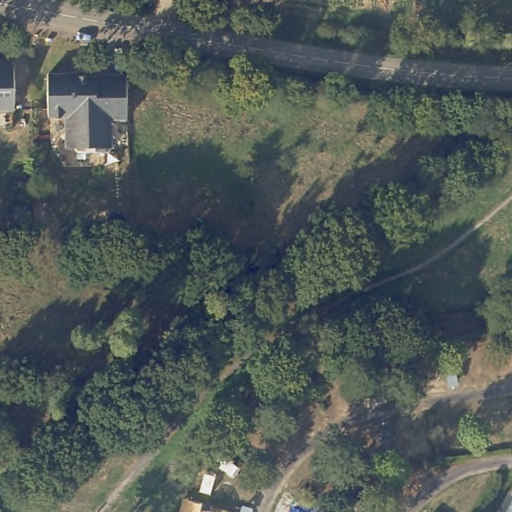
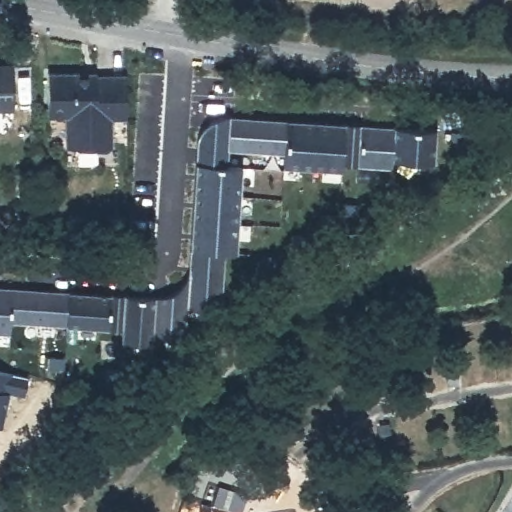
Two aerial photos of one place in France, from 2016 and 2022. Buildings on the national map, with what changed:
unchanged [(19,65),(18,109),(0,108),(0,65),(19,65)]
unchanged [(127,116),(112,115),(111,143),(110,143),(106,147),(98,146),(94,143),(65,141),(66,111),(49,111),(50,67),(81,68),(81,71),(128,72),(127,116)]
new [(393,166),(344,164),(344,170),(285,166),(286,153),(229,150),(228,165),(244,165),(238,251),(229,251),(225,310),(190,307),(186,338),(154,336),(154,342),(124,339),(125,327),(110,327),(71,324),(71,330),(12,327),(12,336),(0,335),(0,281),(72,286),(71,291),(112,293),(128,294),(157,295),(168,294),(177,290),(186,282),(191,274),(193,249),(198,163),(200,146),(202,129),(210,121),(217,118),(224,115),(233,115),(289,119),(347,122),(439,127),(437,163),(393,160),(393,166)]
unchanged [(512,512),(501,512),(512,495),(512,512)]

